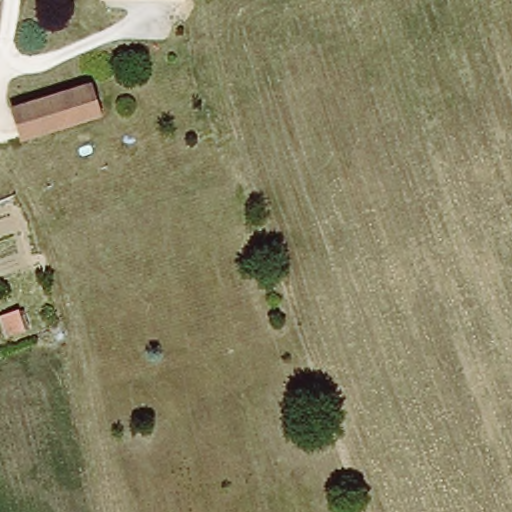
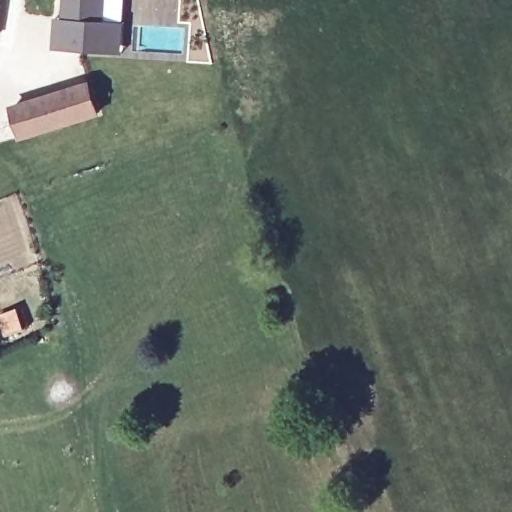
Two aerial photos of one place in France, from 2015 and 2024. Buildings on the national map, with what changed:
new [(53,49),(55,17),(66,17),(67,0),(110,0),(110,22),(123,22),(121,54),(53,49)]
unchanged [(98,119),(23,136),(17,109),(91,92),(98,119)]

